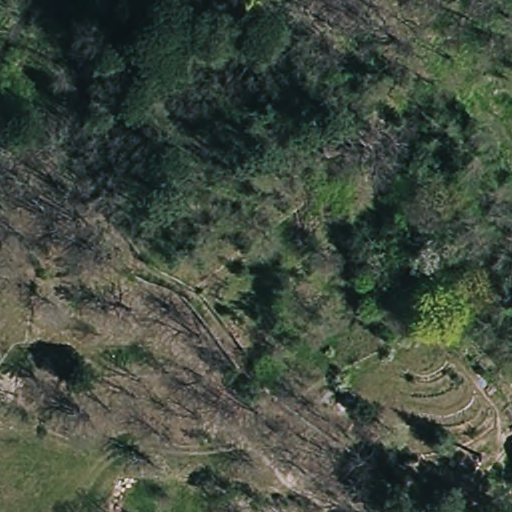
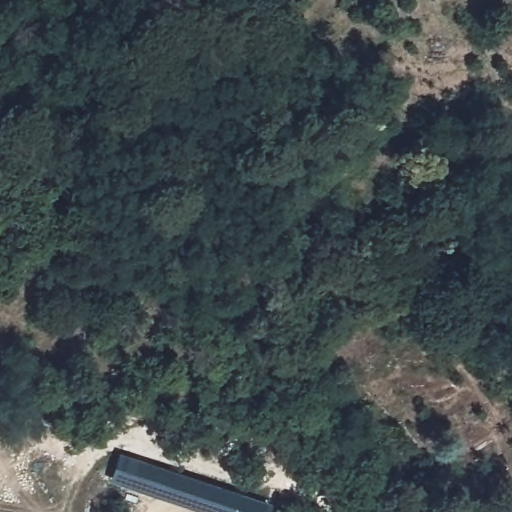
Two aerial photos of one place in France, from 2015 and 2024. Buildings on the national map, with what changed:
unchanged [(344,132),(345,153),(328,159),(320,141),(344,132)]
new [(268,502),(265,512),(201,512),(110,482),(120,453),(268,502)]

